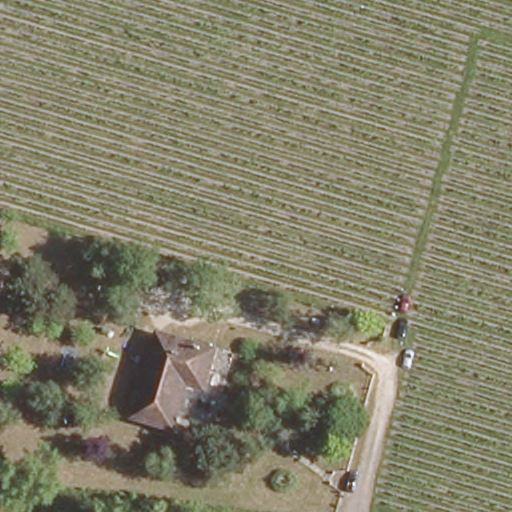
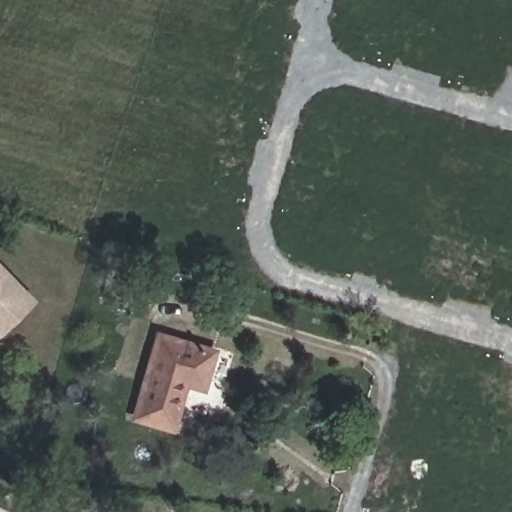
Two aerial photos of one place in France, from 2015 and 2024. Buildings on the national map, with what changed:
new [(36,300),(0,335),(0,262),(36,300)]
unchanged [(142,309),(108,298),(115,274),(149,285),(142,309)]
unchanged [(205,385),(189,380),(174,426),(134,414),(159,332),(216,349),(205,385)]

